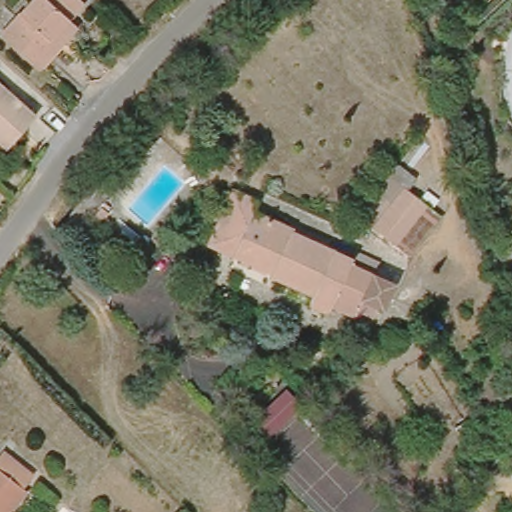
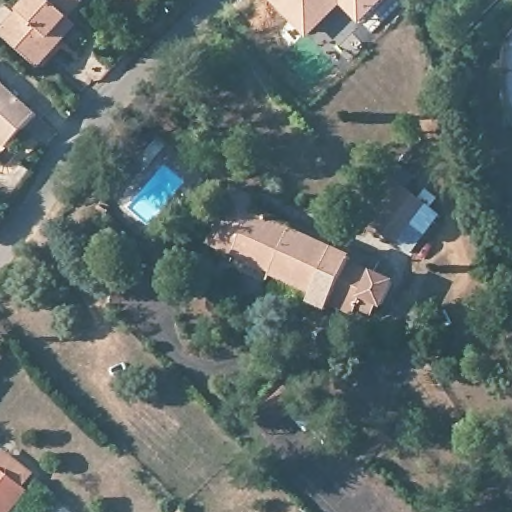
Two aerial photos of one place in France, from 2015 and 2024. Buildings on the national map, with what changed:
unchanged [(24,0),(76,0),(66,11),(75,19),(58,39),(34,67),(0,39),(0,28),(24,0)]
new [(311,34),(281,3),(284,0),(390,0),(375,14),(364,25),(343,3),(311,34)]
unchanged [(6,144),(0,138),(0,74),(38,109),(6,144)]
unchanged [(418,234),(407,228),(402,239),(375,224),(399,180),(427,195),(437,201),(418,234)]
unchanged [(325,298),(305,292),(308,285),(275,273),(276,271),(228,254),(202,245),(208,231),(223,189),(250,198),(246,209),(288,224),(287,227),(344,247),(346,241),(369,250),(364,263),(384,270),(376,293),(356,286),(351,298),(327,291),(325,298)]
unchanged [(15,501),(12,499),(1,512),(0,512),(0,460),(29,483),(15,501)]

